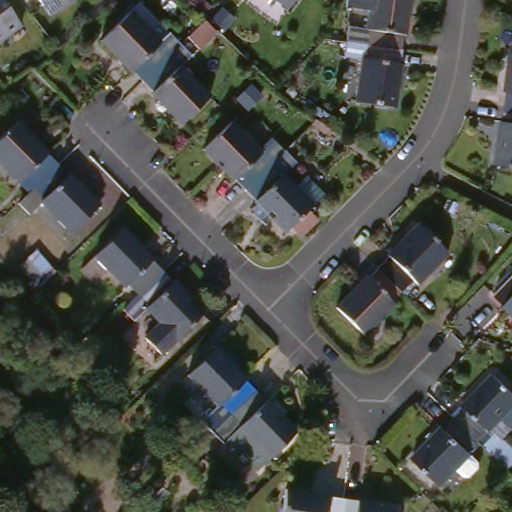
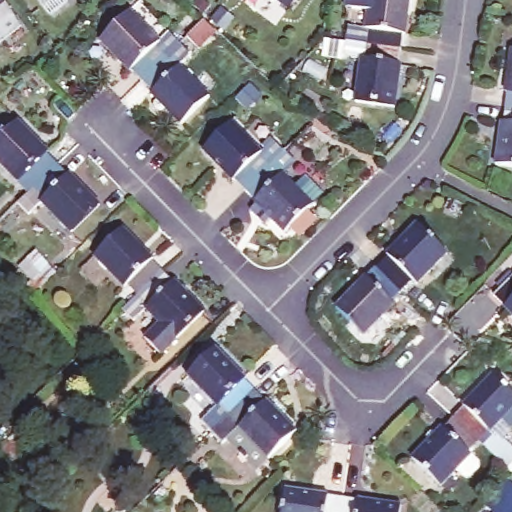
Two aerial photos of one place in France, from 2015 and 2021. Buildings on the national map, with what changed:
unchanged [(44,17),(36,5),(32,0),(60,0),(63,4),(44,17)]
unchanged [(240,2),(237,0),(242,0),(240,2)]
unchanged [(286,20),(264,0),(303,0),(286,20)]
unchanged [(341,25),(363,29),(368,0),(415,0),(408,37),(398,36),(396,49),(338,37),(341,25)]
unchanged [(0,46),(0,6),(18,33),(0,46)]
unchanged [(135,74),(129,79),(98,47),(134,14),(164,47),(157,54),(166,63),(144,84),(135,74)]
unchanged [(396,49),(392,72),(401,73),(393,116),(346,107),(356,62),(334,59),(338,37),(396,49)]
unchanged [(166,63),(181,47),(198,64),(189,72),(216,100),(181,132),(151,99),(154,95),(144,84),(166,63)]
unchanged [(508,107),(509,92),(501,92),(507,51),(512,51),(512,107),(508,107)]
unchanged [(491,173),(496,127),(504,127),(508,107),(512,107),(512,176),(491,173)]
unchanged [(238,190),(228,180),(223,186),(193,155),(230,123),(257,155),(251,160),(259,169),(238,190)]
unchanged [(23,179),(14,187),(0,172),(0,143),(18,126),(48,157),(43,162),(50,169),(31,187),(23,179)]
unchanged [(288,164),(278,174),(291,187),(303,176),(324,199),(302,220),(312,230),(294,247),(285,237),(279,243),(245,208),(251,202),(238,190),(259,169),(277,152),(288,164)]
unchanged [(63,182),(68,177),(98,210),(67,241),(36,209),(23,221),(11,207),(31,187),(50,169),(63,182)]
unchanged [(378,275),(388,265),(381,257),(413,227),(445,261),(414,291),(409,286),(398,296),(378,275)]
unchanged [(129,291),(123,285),(117,292),(89,263),(121,231),(154,267),(150,271),(129,291)]
unchanged [(163,285),(169,280),(205,316),(158,363),(140,346),(156,330),(137,311),(128,321),(114,307),(129,291),(150,271),(163,285)]
unchanged [(381,312),(387,318),(356,348),(323,314),(353,285),(360,292),(378,275),(398,296),(381,312)]
unchanged [(497,321),(503,315),(488,299),(512,275),(512,336),(497,321)]
unchanged [(218,403),(213,408),(186,381),(218,351),(243,379),(237,385),(246,395),(228,413),(218,403)]
unchanged [(506,432),(496,422),(486,433),(499,447),(488,459),(474,445),(451,422),(461,412),(454,405),(485,374),(512,401),(512,426),(506,432)]
unchanged [(246,395),(261,410),(267,404),(298,436),(248,483),(203,436),(228,413),(246,395)]
unchanged [(474,445),(462,457),(468,463),(439,493),(403,455),(434,425),(441,432),(451,422),(474,445)]
unchanged [(329,487),(328,498),(346,501),(344,512),(280,512),(284,481),(329,487)]
unchanged [(346,496),(405,502),(404,512),(344,512),(346,501),(346,496)]

